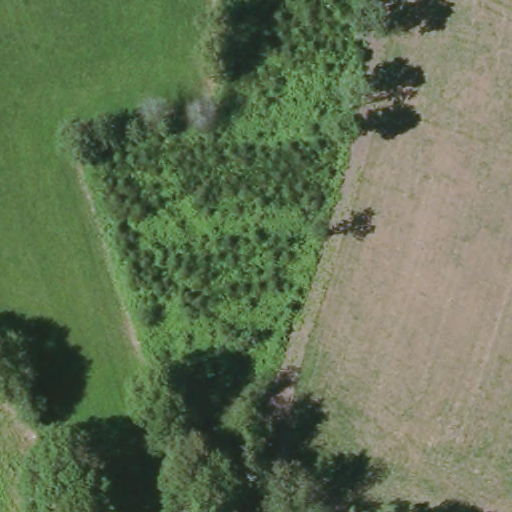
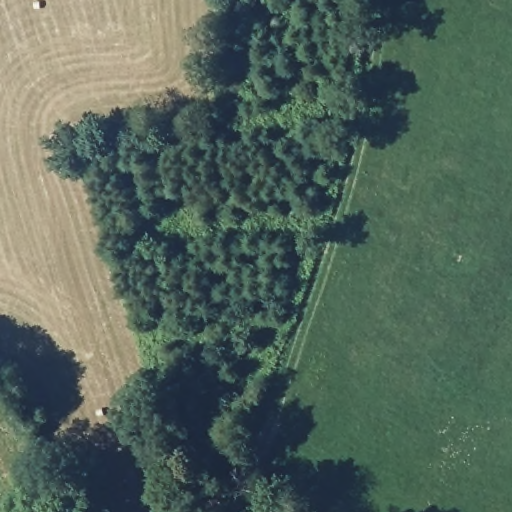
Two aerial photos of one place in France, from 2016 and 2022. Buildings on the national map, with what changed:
[]

